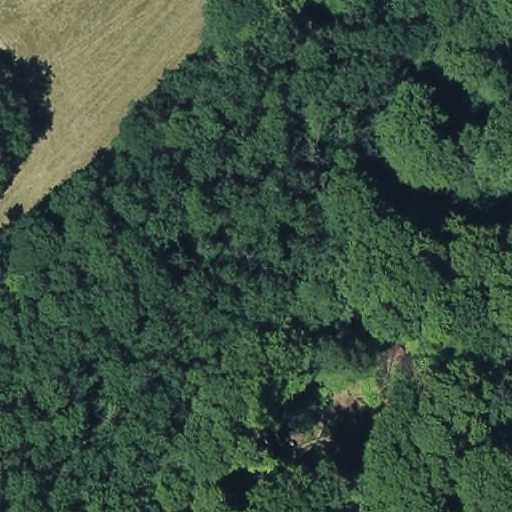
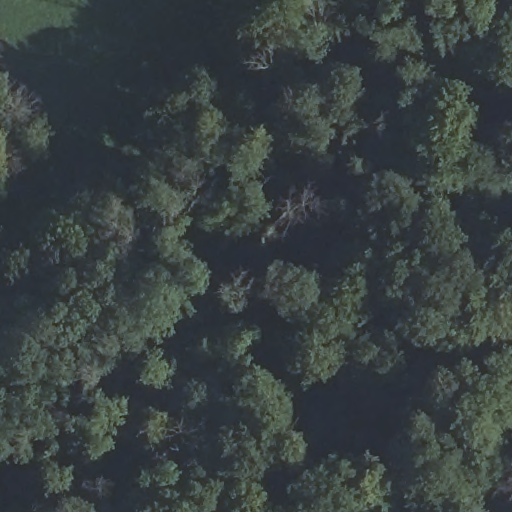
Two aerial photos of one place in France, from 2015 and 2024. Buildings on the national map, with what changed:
unchanged [(16,80),(0,90),(0,57),(16,80)]

